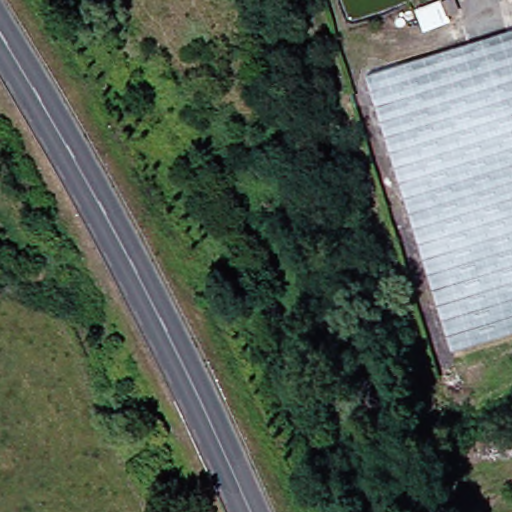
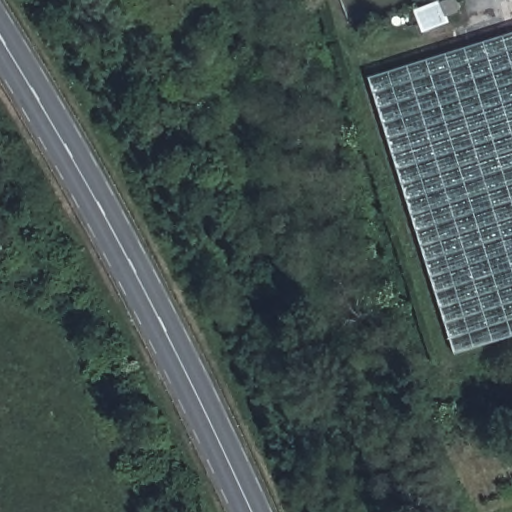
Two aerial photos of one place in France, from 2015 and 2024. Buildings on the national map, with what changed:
unchanged [(360,78),(481,41),(512,32),(512,333),(443,353),(360,78)]

